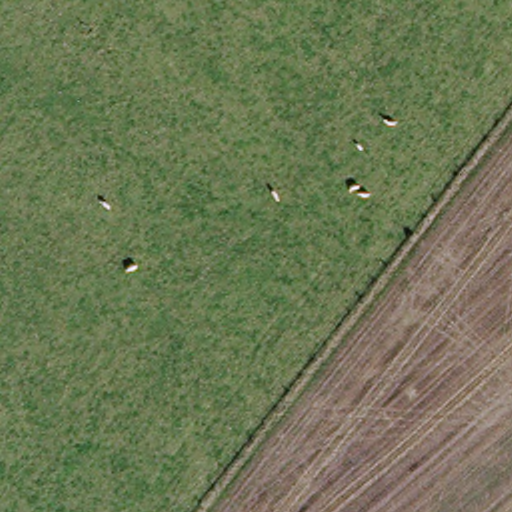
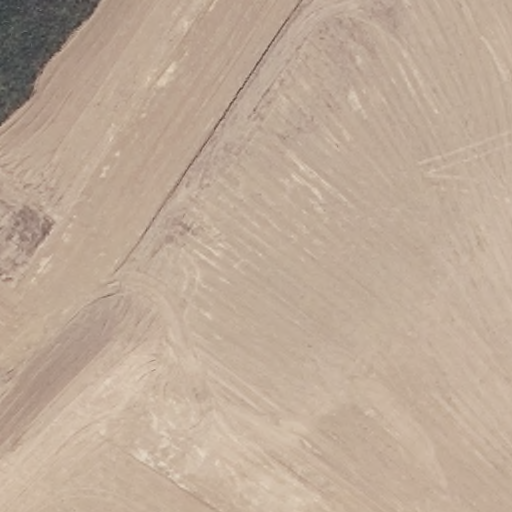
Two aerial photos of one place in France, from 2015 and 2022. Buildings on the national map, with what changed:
[]

